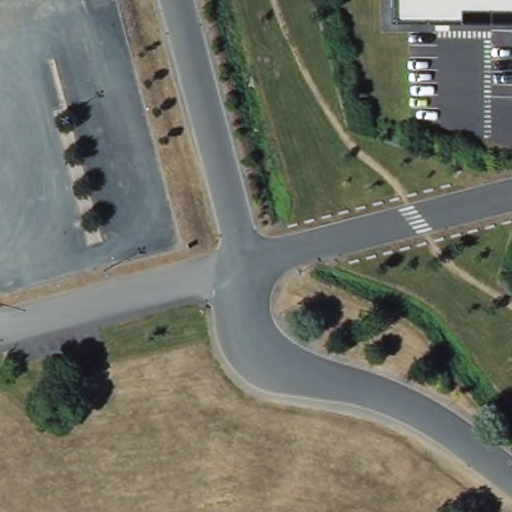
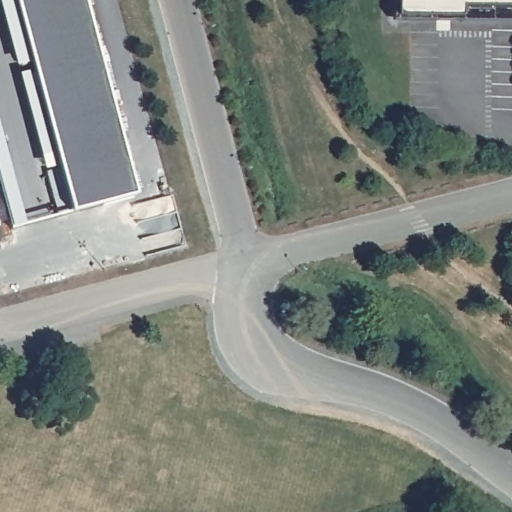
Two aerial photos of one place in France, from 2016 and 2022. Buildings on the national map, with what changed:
new [(80,0),(132,196),(69,212),(13,0),(80,0)]
unchanged [(458,18),(396,18),(396,0),(512,0),(512,6),(460,5),(458,18)]

